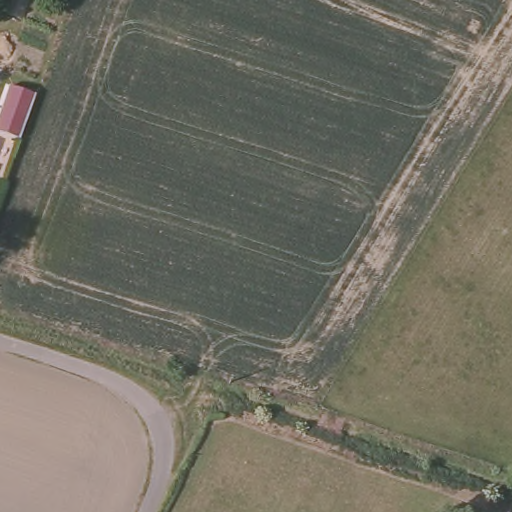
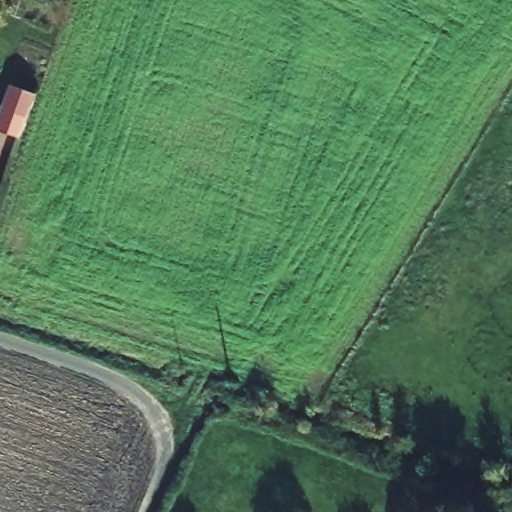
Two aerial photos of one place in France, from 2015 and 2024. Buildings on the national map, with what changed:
unchanged [(0,131),(0,112),(10,86),(30,92),(15,137),(0,131)]

